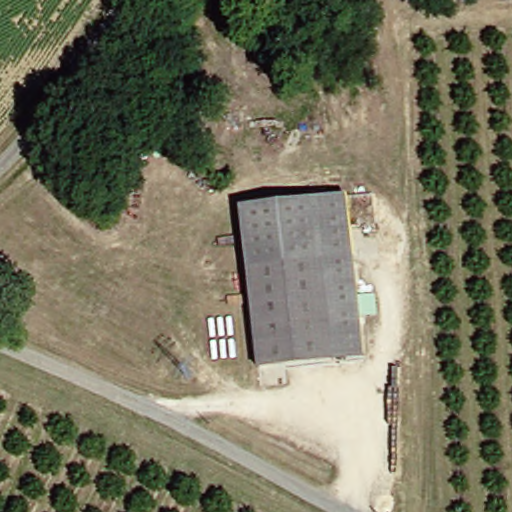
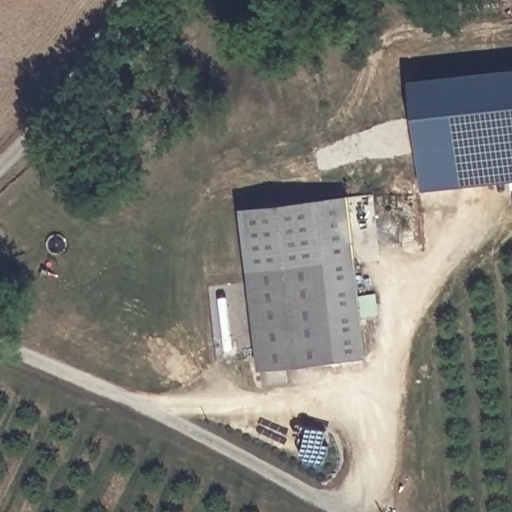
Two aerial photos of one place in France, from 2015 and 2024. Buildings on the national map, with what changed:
new [(512,67),(512,180),(422,190),(408,78),(512,67)]
unchanged [(361,361),(256,371),(237,212),(345,200),(361,361)]

